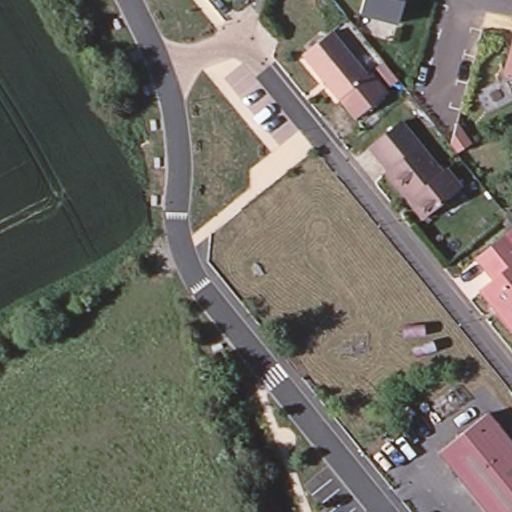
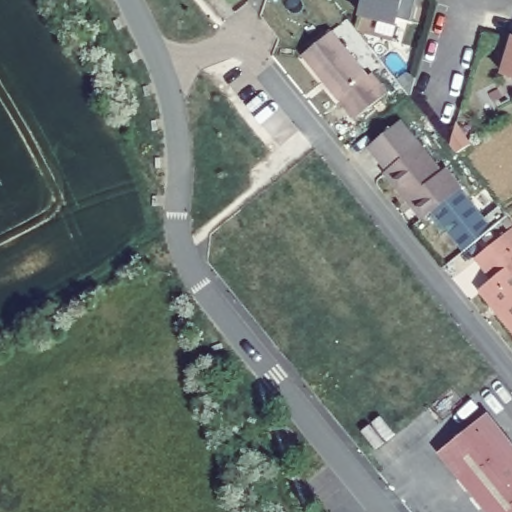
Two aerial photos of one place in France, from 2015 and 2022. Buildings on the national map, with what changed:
unchanged [(400,0),(395,21),(357,10),(359,1),(359,0),(401,0),(400,0)]
unchanged [(372,85),(342,110),(326,90),(325,91),(288,46),(319,22),(355,67),(357,66),(372,85)]
unchanged [(510,46),(512,46),(512,74),(502,71),(510,46)]
unchanged [(457,189),(424,216),(410,198),(405,202),(381,174),(385,171),(366,149),(395,124),(438,176),(442,172),(457,189)]
unchanged [(489,282),(472,262),(512,230),(512,265),(490,283),(489,282)]
unchanged [(512,265),(512,336),(476,292),(489,282),(490,283),(512,265)]
unchanged [(484,413),(512,449),(512,512),(483,512),(435,452),(484,413)]

